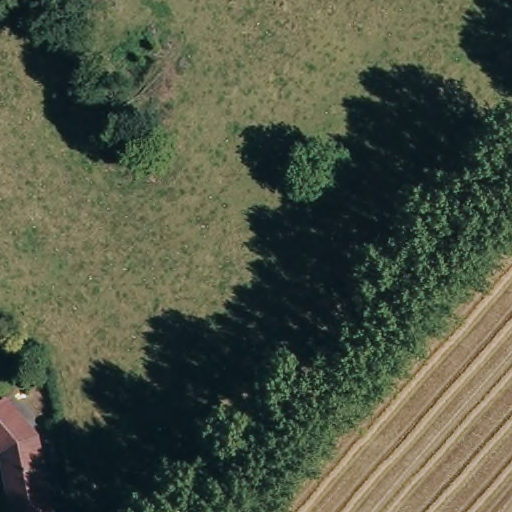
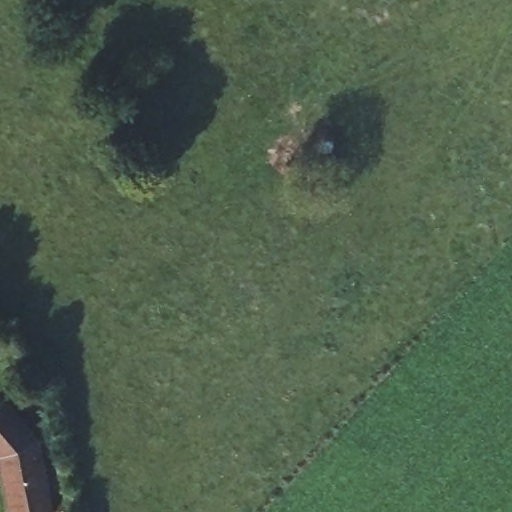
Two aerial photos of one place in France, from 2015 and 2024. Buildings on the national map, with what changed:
unchanged [(8,395),(40,433),(48,507),(10,512),(3,445),(0,442),(0,401),(8,395)]
unchanged [(75,503),(77,512),(52,512),(51,507),(75,503)]

